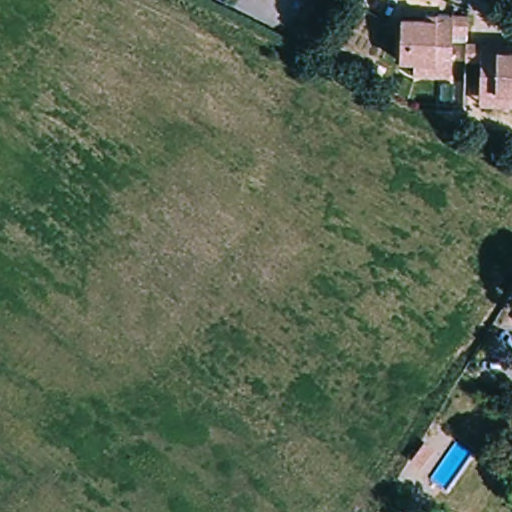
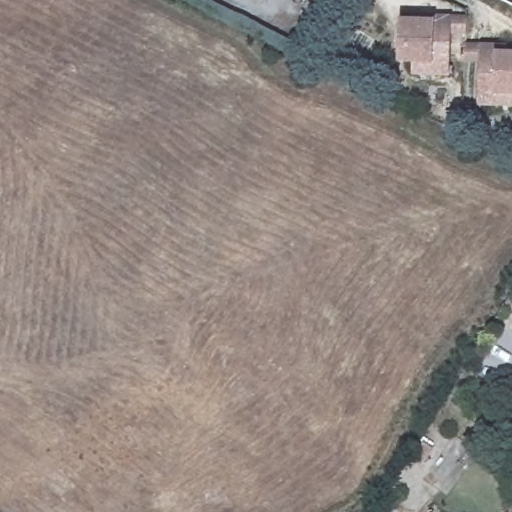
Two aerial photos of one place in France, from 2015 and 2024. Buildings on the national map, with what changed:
unchanged [(409,64),(395,63),(400,20),(424,23),(425,18),(433,19),(450,20),(467,23),(465,38),(449,36),(445,68),(444,79),(408,75),(409,64)]
unchanged [(475,89),(478,59),(462,57),(464,39),(480,41),(497,44),(505,44),(505,52),(512,53),(512,94),(510,94),(509,105),(473,100),(475,89)]

